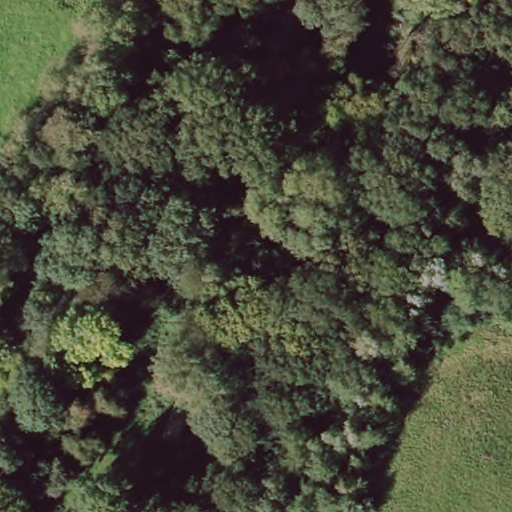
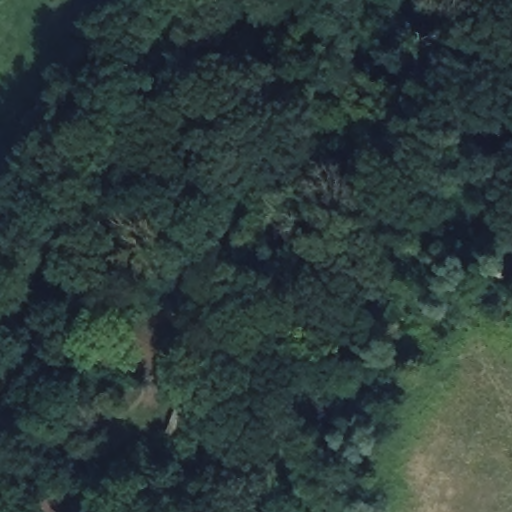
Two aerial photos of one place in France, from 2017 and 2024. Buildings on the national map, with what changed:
unchanged [(176,447),(162,440),(177,399),(191,404),(176,447)]

